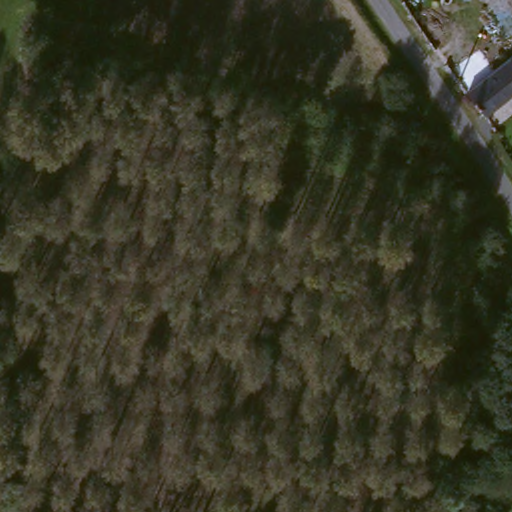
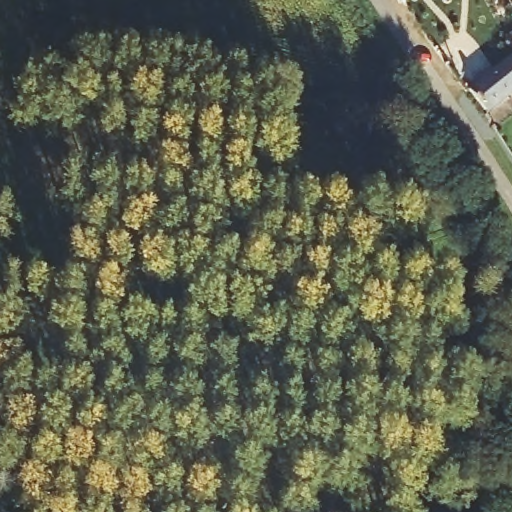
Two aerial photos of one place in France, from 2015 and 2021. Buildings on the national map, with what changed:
unchanged [(512,65),(512,95),(490,107),(476,82),(512,65)]

